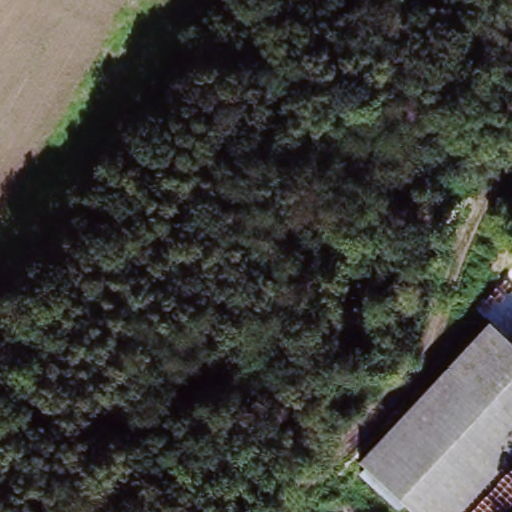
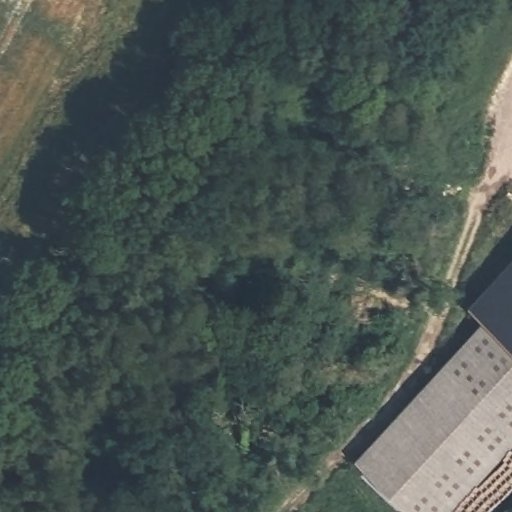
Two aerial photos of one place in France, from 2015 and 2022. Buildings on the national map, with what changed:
new [(485,324),(488,320),(473,310),(512,269),(512,349),(485,324)]
unchanged [(512,349),(512,453),(456,512),(407,512),(357,464),(485,324),(512,349)]

